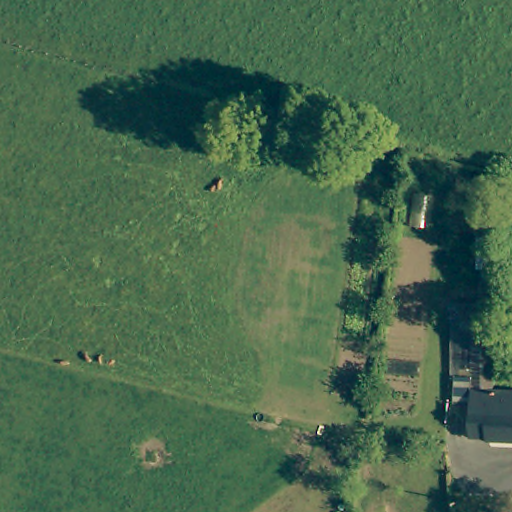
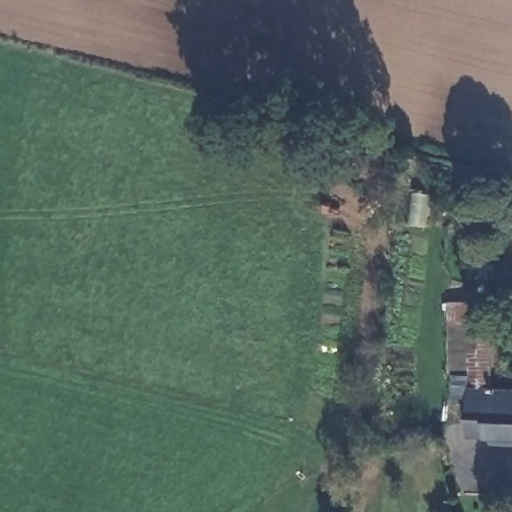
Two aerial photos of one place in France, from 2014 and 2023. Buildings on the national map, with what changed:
unchanged [(470,383),(470,373),(470,326),(469,326),(468,299),(490,300),(490,325),(489,385),(470,383)]
unchanged [(489,385),(502,385),(512,386),(512,436),(484,435),(484,432),(470,432),(464,432),(465,383),(470,383),(489,385)]

